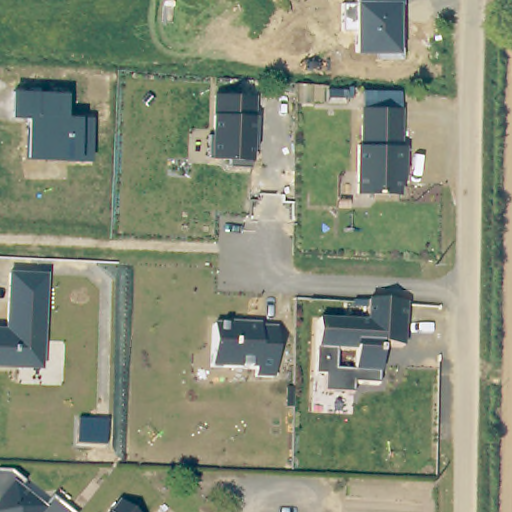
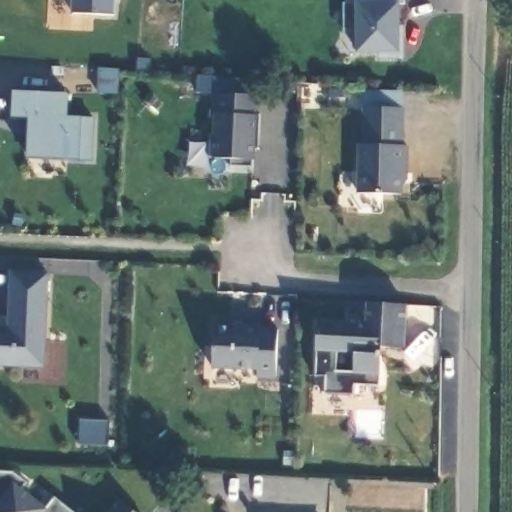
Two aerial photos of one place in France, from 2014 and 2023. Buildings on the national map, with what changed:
new [(112,16),(71,14),(72,0),(113,0),(112,16)]
unchanged [(401,55),(356,54),(356,30),(342,30),(343,5),(356,5),(356,0),(401,0),(401,55)]
unchanged [(66,93),(66,116),(92,117),(91,162),(26,160),(27,120),(11,119),(12,92),(66,93)]
unchanged [(252,115),(257,115),(256,135),(251,135),(250,167),(228,166),(229,158),(207,158),(208,134),(213,134),(214,94),(253,95),(252,115)]
unchanged [(406,149),(406,176),(400,181),(400,196),(357,195),(359,147),(362,147),(363,127),(364,110),(403,111),(402,129),(401,149),(406,149)]
unchanged [(9,272),(46,275),(42,368),(0,366),(0,328),(4,328),(9,272)]
unchanged [(380,381),(355,381),(355,391),(326,391),(326,366),(316,366),(316,321),(365,321),(365,299),(388,299),(397,300),(403,300),(403,343),(380,343),(380,352),(380,381)]
unchanged [(274,377),(256,376),(256,369),(211,367),(213,326),(241,328),(241,325),(259,326),(259,328),(277,329),(274,377)]
unchanged [(107,422),(105,447),(77,445),(80,420),(107,422)]
unchanged [(26,483),(21,489),(45,507),(51,496),(69,512),(0,512),(0,473),(11,473),(26,483)]
unchanged [(110,512),(118,501),(133,512),(110,512)]

